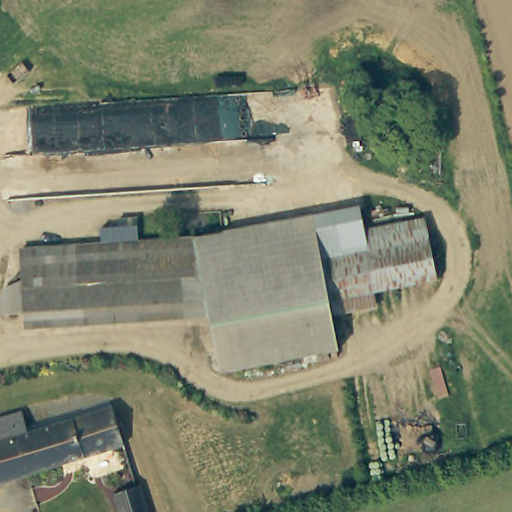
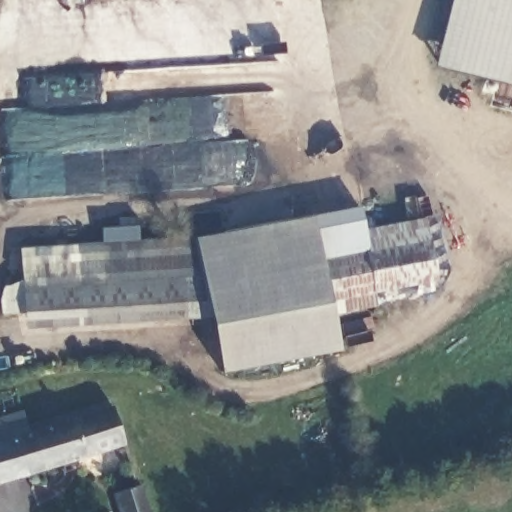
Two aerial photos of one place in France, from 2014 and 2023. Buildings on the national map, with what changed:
new [(450,0),(512,0),(512,86),(433,66),(450,0)]
unchanged [(365,229),(424,216),(439,279),(374,293),(377,305),(334,317),(341,349),(222,372),(211,316),(22,328),(19,246),(100,242),(101,227),(117,226),(117,217),(139,218),(140,238),(196,237),(361,205),(365,229)]
unchanged [(0,312),(0,287),(20,282),(21,311),(0,312)]
unchanged [(0,482),(0,440),(7,438),(1,416),(21,411),(28,432),(113,405),(125,444),(0,482)]
unchanged [(141,484),(150,512),(119,512),(113,492),(141,484)]

